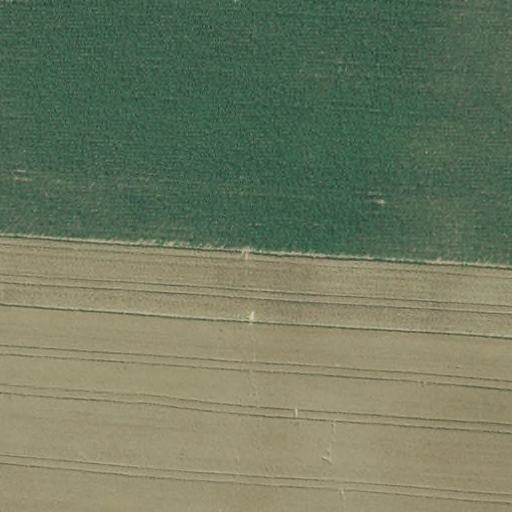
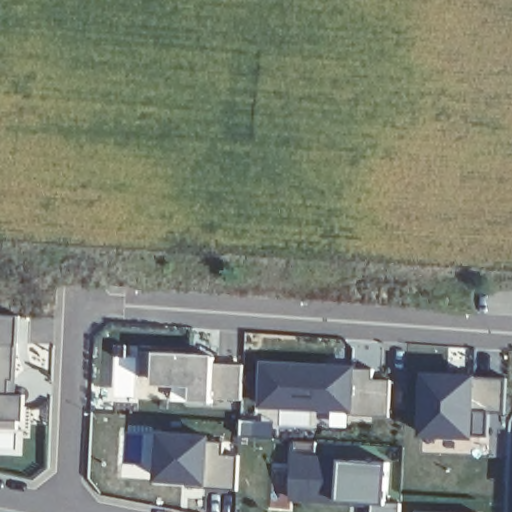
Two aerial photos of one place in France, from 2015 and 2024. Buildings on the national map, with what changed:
new [(26,431),(0,429),(0,315),(31,317),(26,431)]
new [(220,355),(220,362),(244,362),(244,397),(218,397),(217,401),(197,401),(197,387),(160,385),(162,353),(220,355)]
new [(382,366),(382,379),(398,381),(396,416),(267,412),(269,363),(382,366)]
new [(484,377),(481,440),(427,439),(429,375),(484,377)]
new [(222,437),(222,443),(229,443),(230,456),(244,457),(242,489),(165,485),(167,434),(222,437)]
new [(385,462),(382,501),(402,503),(402,512),(368,512),(369,504),(357,504),(357,501),(342,499),(342,503),(309,500),(312,459),(385,462)]

